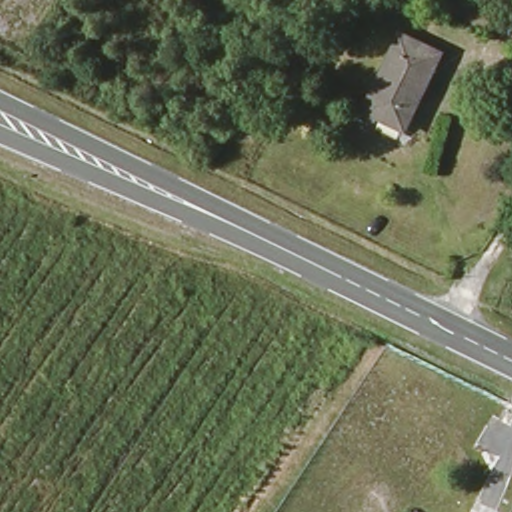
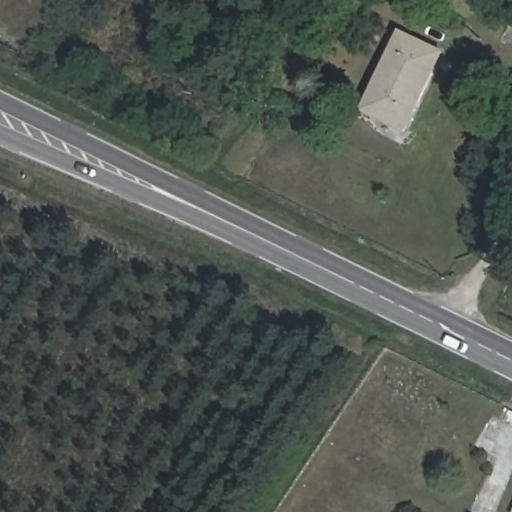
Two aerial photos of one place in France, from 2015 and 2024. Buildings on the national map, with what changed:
unchanged [(399,37),(440,56),(402,133),(362,114),(399,37)]

